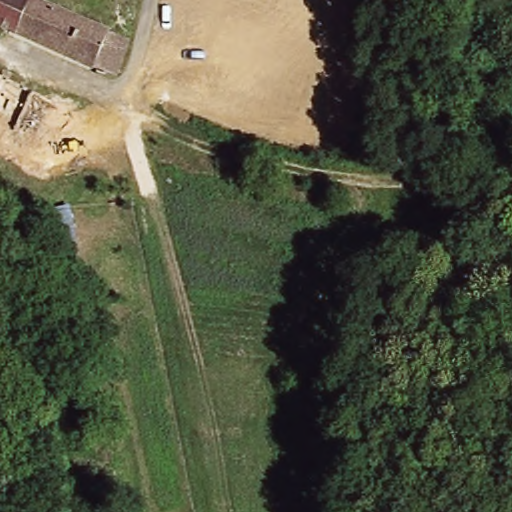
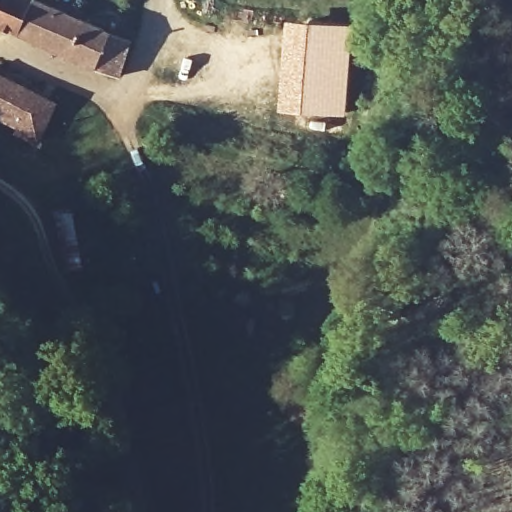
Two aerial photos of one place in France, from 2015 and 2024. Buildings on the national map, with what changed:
unchanged [(116,75),(0,26),(0,0),(26,0),(125,44),(116,75)]
new [(287,18),(357,24),(345,115),(281,108),(287,18)]
unchanged [(42,128),(36,140),(12,131),(14,125),(0,119),(0,73),(68,106),(57,134),(42,128)]
unchanged [(57,270),(45,211),(74,207),(85,266),(57,270)]

